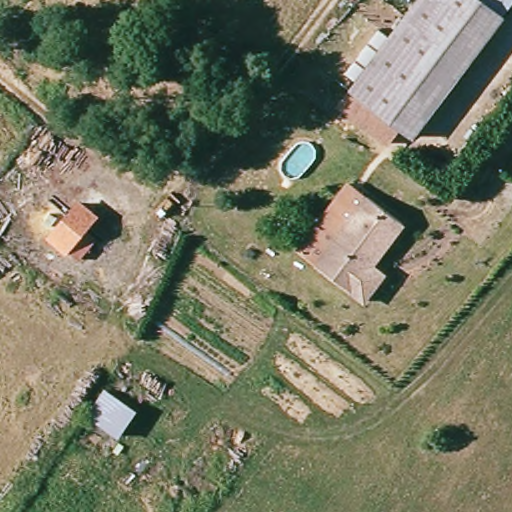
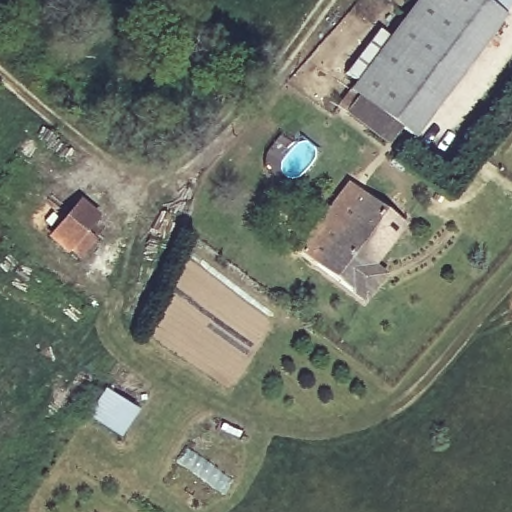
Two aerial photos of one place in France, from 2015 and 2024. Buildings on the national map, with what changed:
unchanged [(406,0),(488,0),(491,2),(427,139),(358,107),(406,0)]
unchanged [(321,270),(296,250),(347,182),(357,194),(321,270)]
unchanged [(357,194),(398,212),(376,260),(389,267),(376,296),(321,270),(357,194)]
unchanged [(81,259),(70,250),(67,254),(47,237),(78,199),(99,216),(87,232),(97,239),(81,259)]
unchanged [(88,416),(106,388),(140,409),(120,438),(88,416)]

